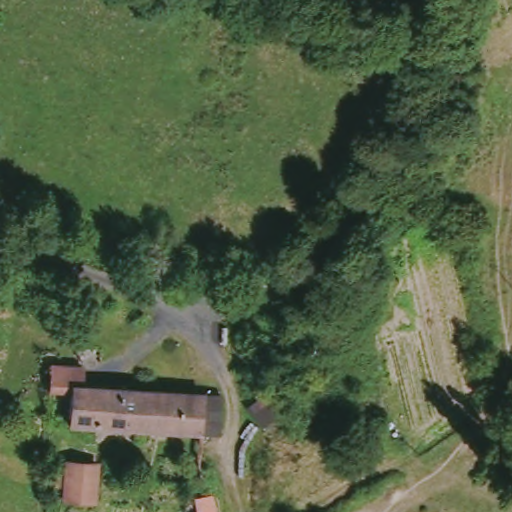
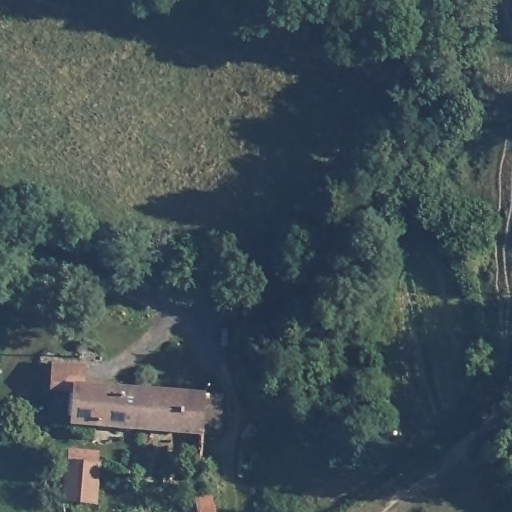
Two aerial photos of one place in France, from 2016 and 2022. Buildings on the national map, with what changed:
unchanged [(78,394),(57,390),(59,368),(91,369),(91,390),(146,393),(143,432),(77,427),(78,394)]
unchanged [(225,401),(225,431),(204,429),(203,436),(143,432),(146,393),(191,399),(225,401)]
unchanged [(72,502),(74,465),(103,466),(102,503),(72,502)]

